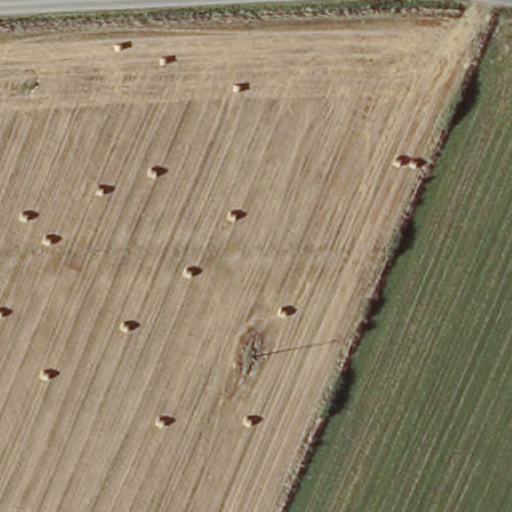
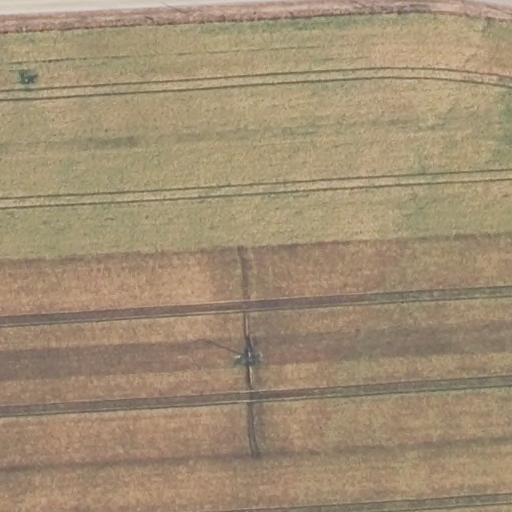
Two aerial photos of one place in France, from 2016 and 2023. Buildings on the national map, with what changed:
[]

